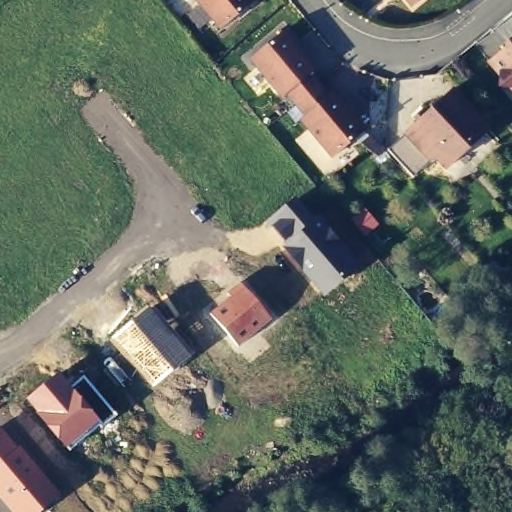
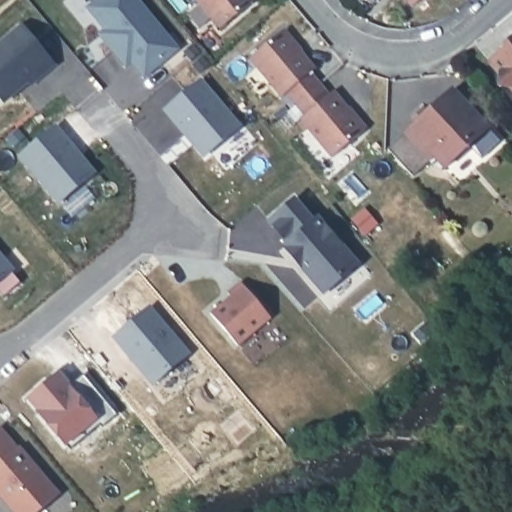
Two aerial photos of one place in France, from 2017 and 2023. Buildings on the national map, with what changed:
new [(138,0),(181,52),(145,79),(133,65),(126,70),(99,36),(105,32),(87,9),(99,0),(138,0)]
unchanged [(220,29),(196,0),(252,0),(254,1),(220,29)]
unchanged [(408,0),(420,0),(413,6),(408,0)]
new [(34,89),(31,85),(5,105),(0,98),(0,45),(22,27),(57,69),(34,89)]
unchanged [(296,104),(287,93),(282,96),(250,59),(284,31),(315,70),(310,74),(319,84),(296,104)]
unchanged [(499,86),(500,74),(490,61),(507,47),(505,45),(512,40),(512,88),(499,86)]
new [(200,76),(239,121),(207,149),(187,127),(185,129),(165,105),(200,76)]
unchanged [(329,96),(333,92),(365,130),(332,157),(300,119),(305,115),(296,104),(319,84),(329,96)]
unchanged [(475,146),(450,169),(440,157),(435,161),(410,134),(423,121),(420,118),(429,110),(432,114),(457,90),(490,124),(494,129),(475,146)]
new [(52,124),(72,148),(70,149),(89,171),(56,199),(17,153),(52,124)]
unchanged [(265,223),(297,196),(317,221),(323,217),(362,268),(324,297),(265,223)]
new [(0,275),(0,254),(10,267),(0,275)]
unchanged [(210,314),(230,298),(227,293),(241,282),(272,318),(237,346),(210,314)]
unchanged [(110,339),(152,305),(193,356),(153,388),(110,339)]
unchanged [(25,398),(57,372),(72,390),(84,378),(116,416),(102,430),(97,424),(67,449),(25,398)]
unchanged [(0,426),(59,498),(41,512),(15,512),(0,494),(0,426)]

